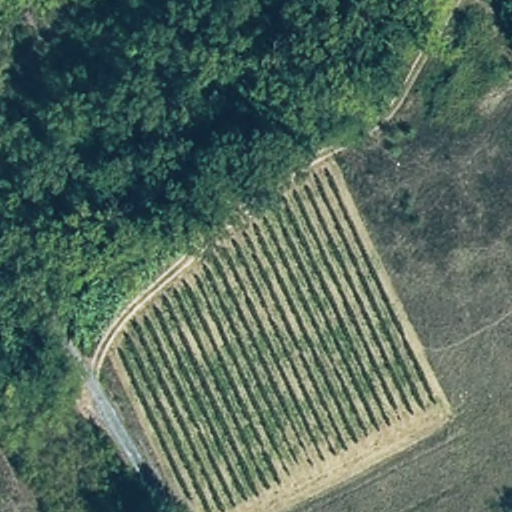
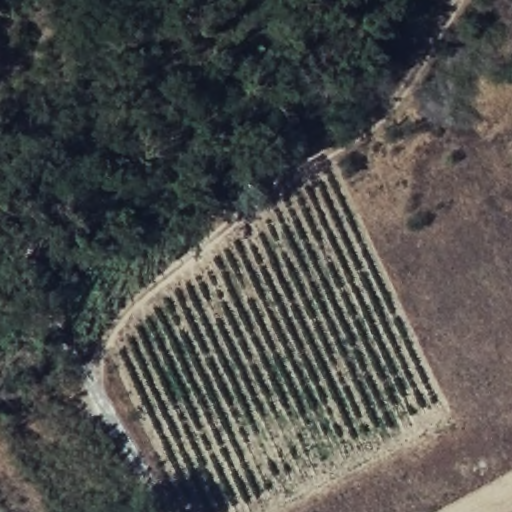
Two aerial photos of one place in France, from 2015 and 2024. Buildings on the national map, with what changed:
[]

